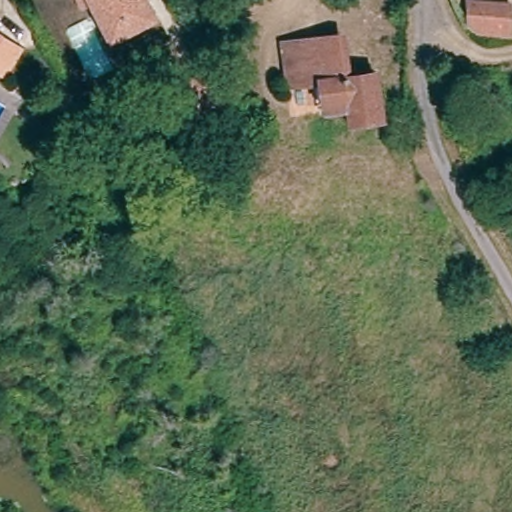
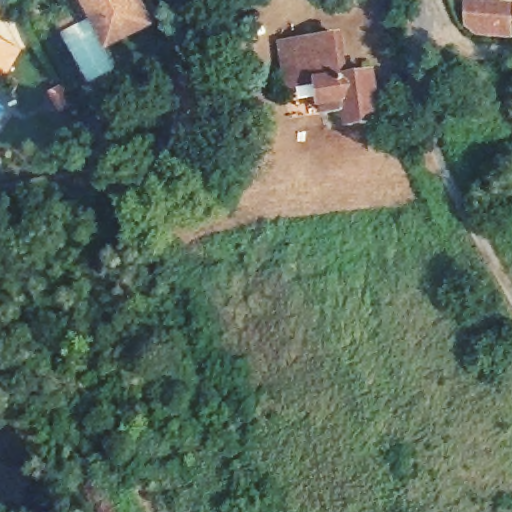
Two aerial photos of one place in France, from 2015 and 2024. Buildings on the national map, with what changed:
unchanged [(109,44),(103,31),(91,9),(87,0),(141,0),(146,9),(152,22),(109,44)]
unchanged [(509,7),(510,37),(476,35),(468,28),(467,5),(509,7)]
unchanged [(379,123),(348,127),(347,112),(323,115),(320,86),(286,90),(281,47),(343,40),(347,80),(374,77),(379,123)]
unchanged [(183,125),(172,102),(189,95),(184,85),(204,76),(219,107),(183,125)]
unchanged [(76,105),(60,113),(49,91),(65,82),(76,105)]

